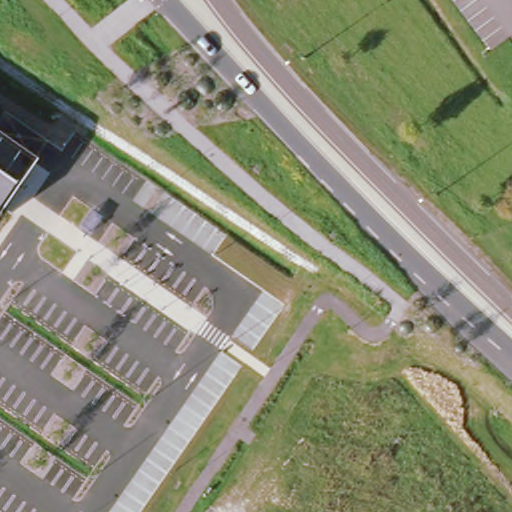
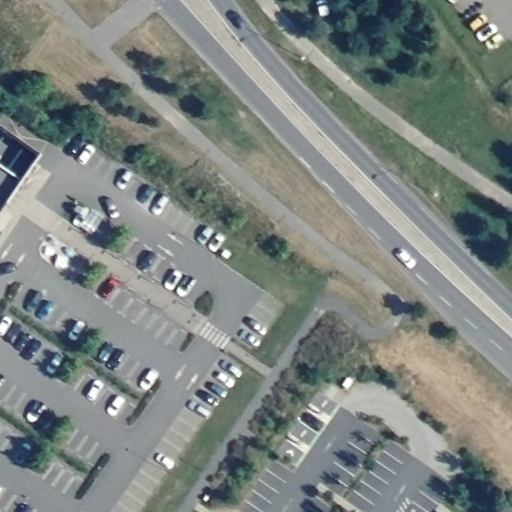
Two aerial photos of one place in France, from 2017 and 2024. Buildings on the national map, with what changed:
unchanged [(0,139),(34,162),(0,211),(0,139)]

